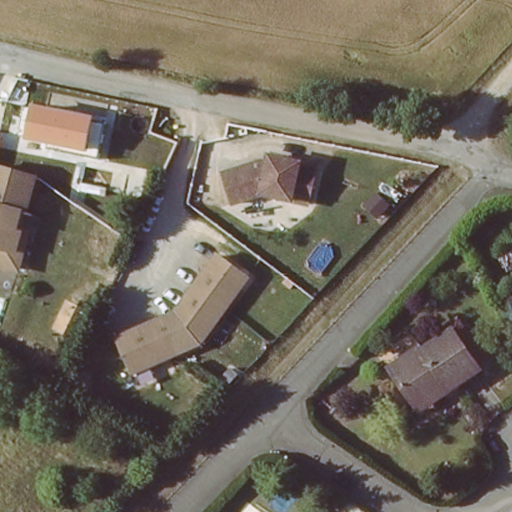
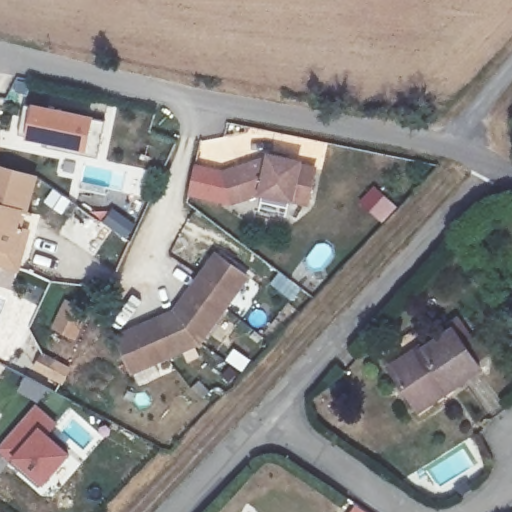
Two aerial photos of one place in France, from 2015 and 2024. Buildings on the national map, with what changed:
unchanged [(33,103),(107,118),(99,156),(50,148),(51,146),(25,139),(33,103)]
unchanged [(0,141),(0,134),(1,134),(0,141)]
unchanged [(317,207),(263,200),(233,211),(225,174),(275,161),(320,171),(317,207)]
unchanged [(24,227),(32,229),(20,275),(0,270),(0,165),(37,175),(24,227)]
unchanged [(205,347),(137,380),(115,341),(179,315),(217,260),(252,279),(205,347)]
unchanged [(415,401),(387,366),(415,344),(418,348),(447,326),(478,365),(450,386),(420,408),(415,401)]
new [(60,424),(50,435),(72,455),(44,486),(15,459),(0,452),(0,448),(37,405),(60,424)]

